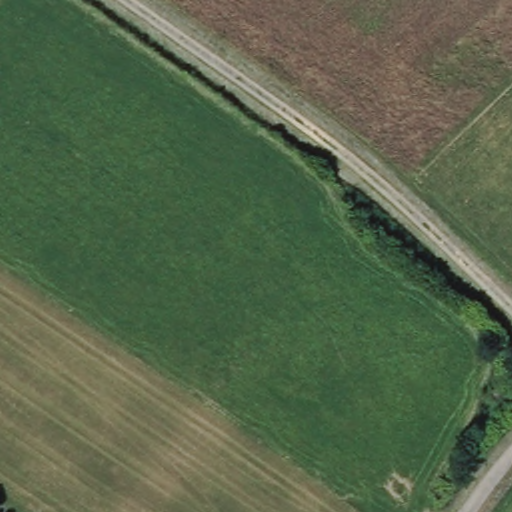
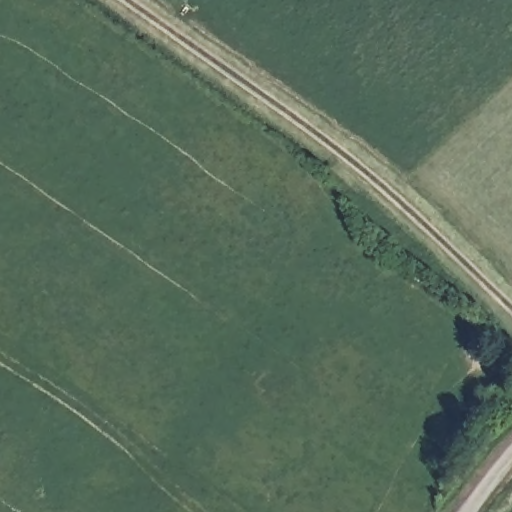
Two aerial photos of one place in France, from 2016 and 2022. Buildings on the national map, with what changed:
unchanged [(486,399),(512,368),(512,406),(503,415),(486,399)]

